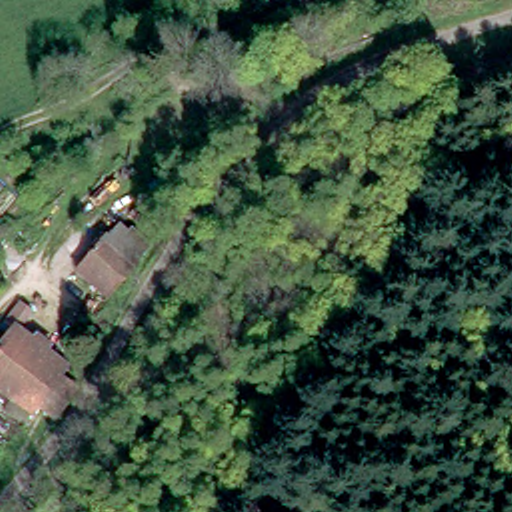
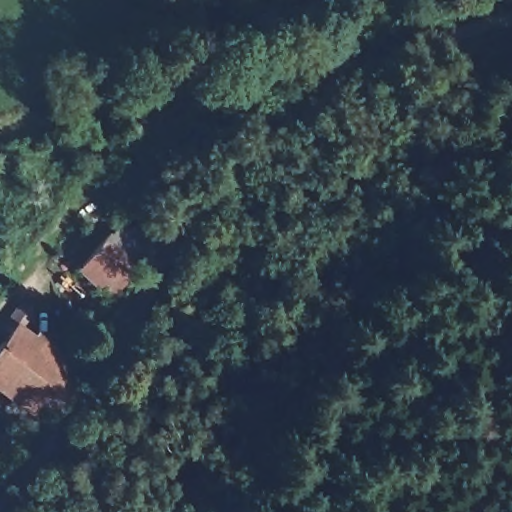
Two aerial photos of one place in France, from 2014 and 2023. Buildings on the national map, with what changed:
unchanged [(144,255),(103,300),(74,276),(116,230),(144,255)]
unchanged [(57,382),(75,397),(55,426),(36,413),(29,421),(0,398),(0,343),(4,338),(0,336),(0,327),(13,308),(26,317),(15,332),(64,372),(57,382)]

